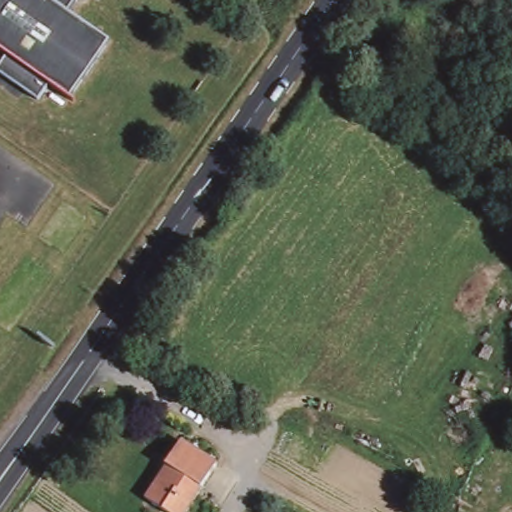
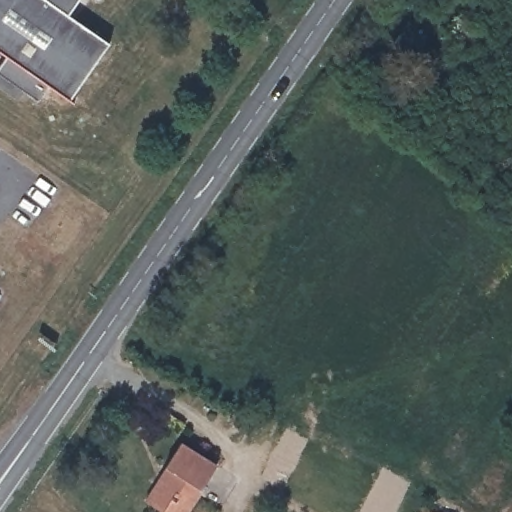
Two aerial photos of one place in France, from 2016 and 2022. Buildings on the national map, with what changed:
unchanged [(109,48),(67,106),(40,86),(29,100),(0,80),(0,0),(41,0),(66,18),(109,48)]
unchanged [(41,0),(79,0),(66,18),(41,0)]
unchanged [(166,466),(181,444),(216,468),(186,512),(161,512),(146,502),(170,468),(166,466)]

